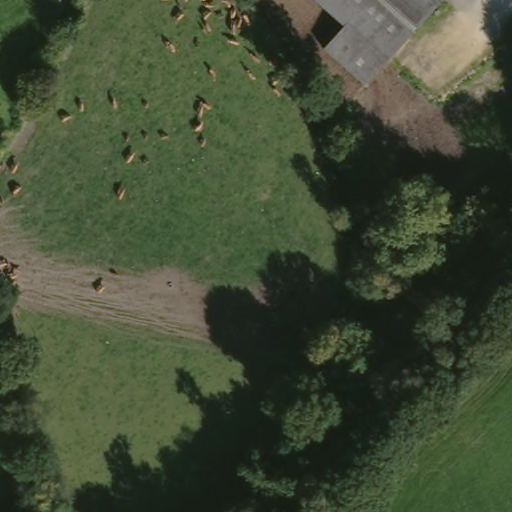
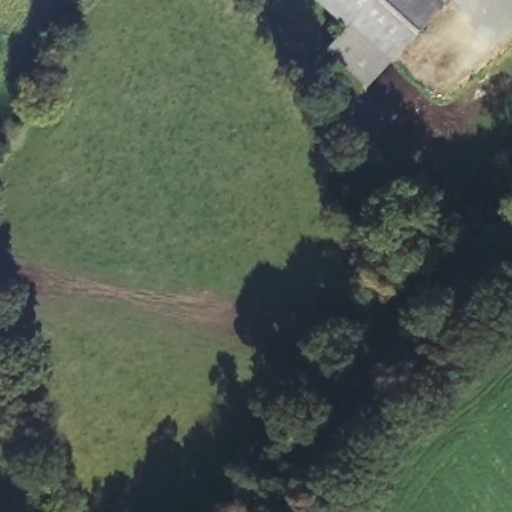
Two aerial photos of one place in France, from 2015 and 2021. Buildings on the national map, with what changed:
unchanged [(327,51),(347,27),(317,0),(452,0),(372,91),(327,51)]

